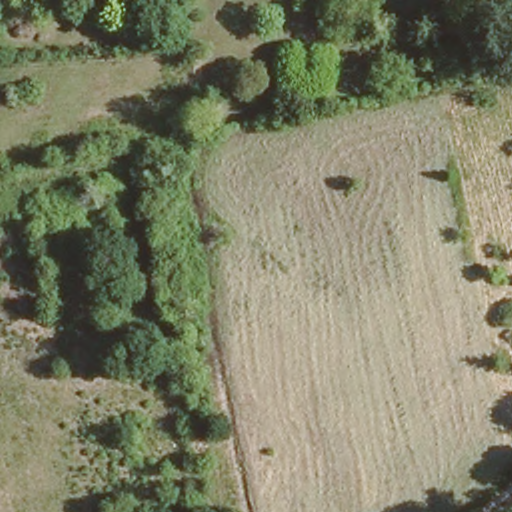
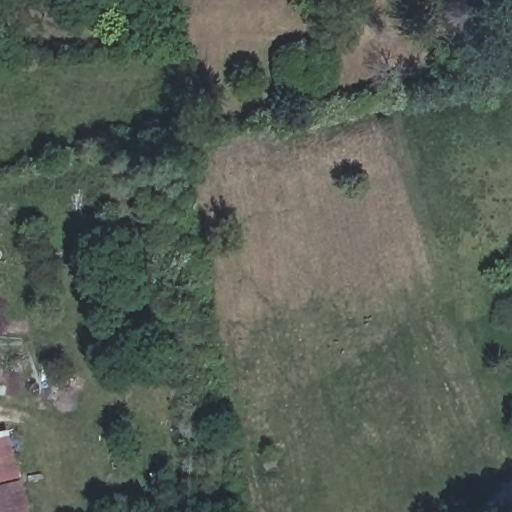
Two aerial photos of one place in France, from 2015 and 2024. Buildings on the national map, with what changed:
new [(0,432),(10,430),(29,512),(0,512),(0,432)]

